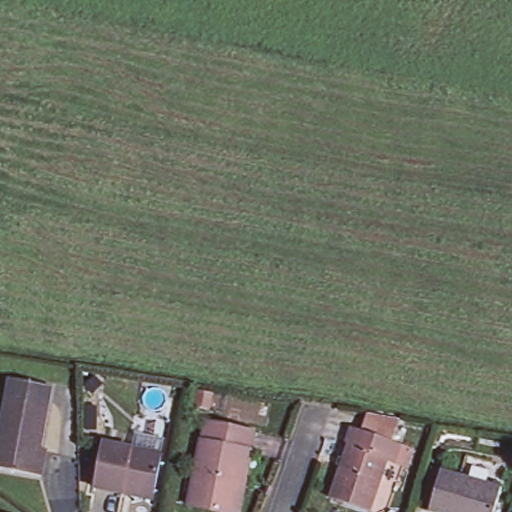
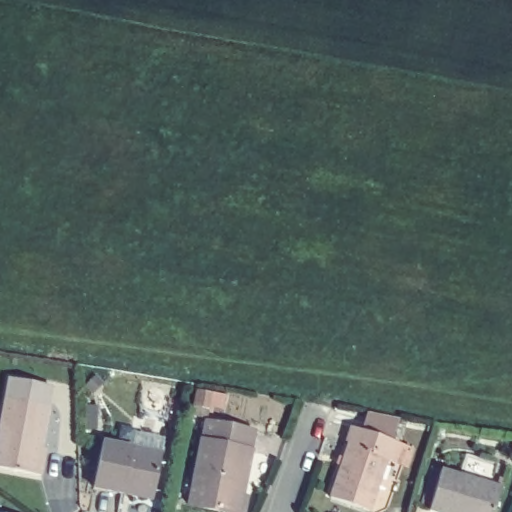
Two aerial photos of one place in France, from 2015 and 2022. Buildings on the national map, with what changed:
unchanged [(45,458),(42,474),(0,466),(0,435),(7,399),(10,378),(52,386),(47,405),(40,447),(46,448),(45,458)]
unchanged [(364,512),(326,498),(352,430),(359,433),(364,419),(395,430),(389,445),(395,446),(410,452),(404,467),(389,461),(384,460),(364,512)]
unchanged [(186,504),(200,439),(202,422),(252,433),(249,451),(236,512),(226,512),(186,504)]
unchanged [(121,490),(92,485),(102,440),(160,452),(152,491),(150,497),(121,490)]
unchanged [(466,511),(458,509),(457,511),(427,501),(440,462),(499,481),(490,512),(466,512),(466,511)]

